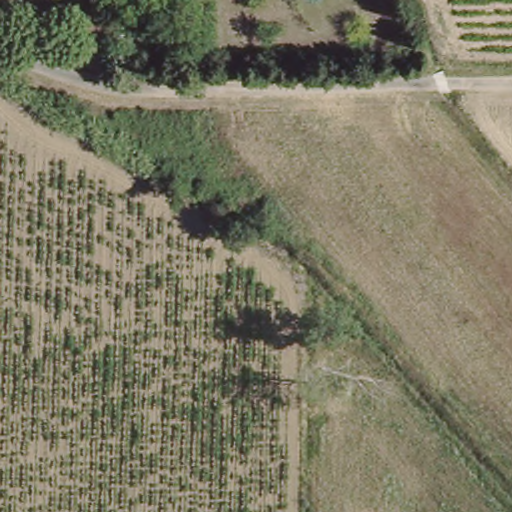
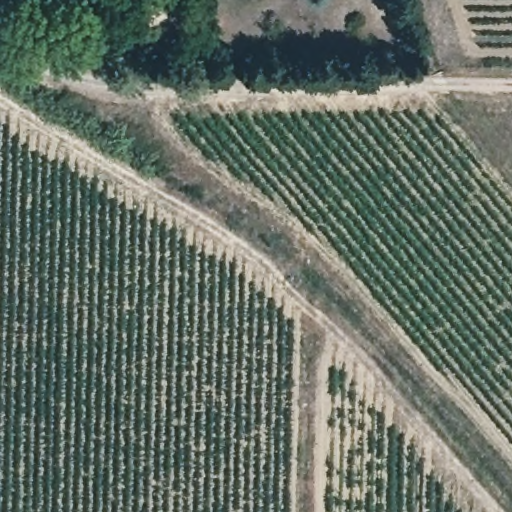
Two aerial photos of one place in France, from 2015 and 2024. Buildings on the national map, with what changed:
unchanged [(80,61),(83,22),(101,24),(99,62),(80,61)]

